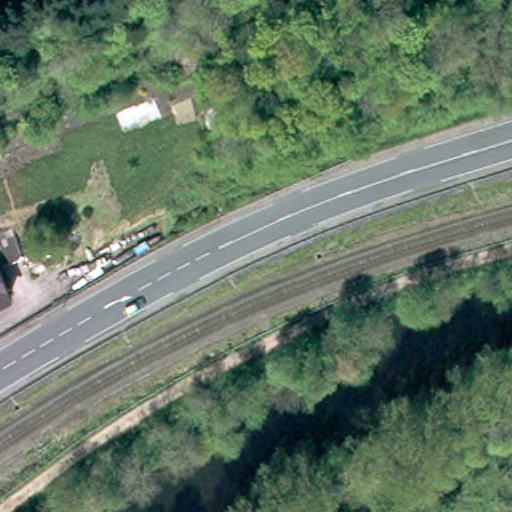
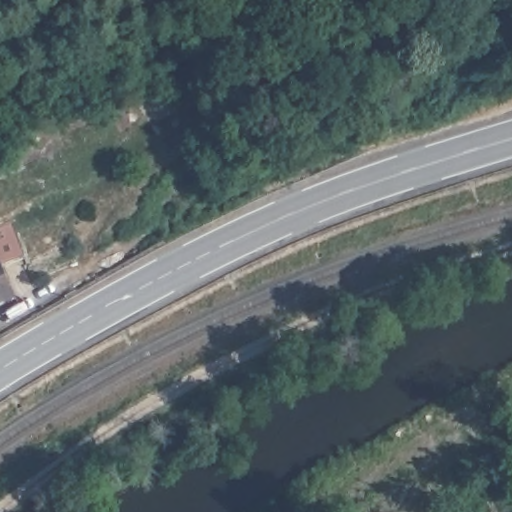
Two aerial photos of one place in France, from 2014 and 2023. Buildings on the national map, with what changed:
unchanged [(21,297),(0,305),(0,234),(22,225),(33,255),(9,265),(21,297)]

